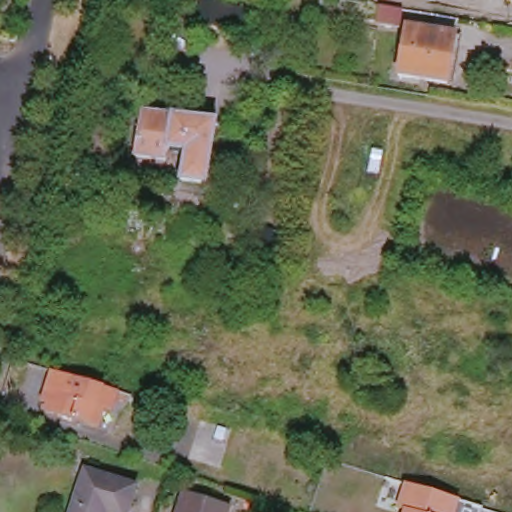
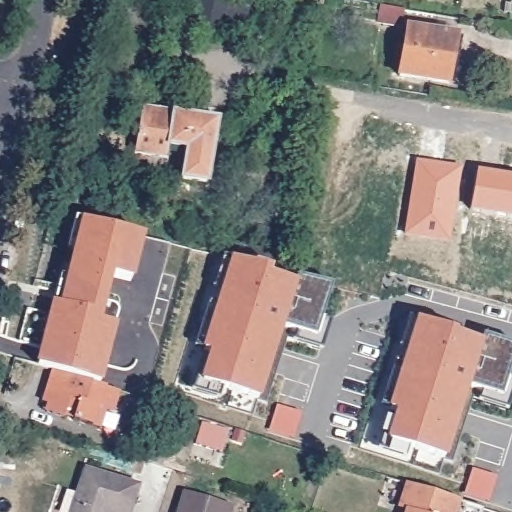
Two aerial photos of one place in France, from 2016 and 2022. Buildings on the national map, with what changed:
unchanged [(191,0),(215,0),(242,9),(232,37),(183,20),(191,0)]
unchanged [(408,26),(457,36),(450,74),(447,84),(399,75),(400,64),(408,26)]
unchanged [(212,183),(187,179),(192,149),(174,146),(172,158),(140,153),(146,108),(222,119),(212,183)]
new [(150,258),(133,281),(112,275),(105,309),(108,309),(112,311),(115,314),(112,326),(115,326),(100,386),(53,371),(37,367),(52,303),(58,305),(81,221),(143,238),(150,258)]
new [(315,336),(282,326),(260,399),(200,381),(208,352),(202,350),(230,258),(270,269),(268,276),(295,284),(296,277),(331,287),(315,336)]
new [(480,400),(483,390),(469,385),(446,460),(387,439),(395,411),(388,409),(417,320),(482,343),(485,337),(512,346),(512,364),(507,379),(512,381),(512,394),(507,408),(480,400)]
unchanged [(49,403),(43,401),(45,399),(53,371),(100,386),(116,391),(110,413),(102,410),(100,416),(97,427),(73,419),(75,417),(65,414),(64,416),(52,413),(47,411),(49,403)]
unchanged [(135,512),(77,512),(91,469),(143,486),(135,512)]
unchanged [(460,512),(406,512),(402,511),(403,510),(410,486),(463,503),(460,512)]
unchanged [(234,512),(183,512),(190,492),(235,507),(234,512)]

